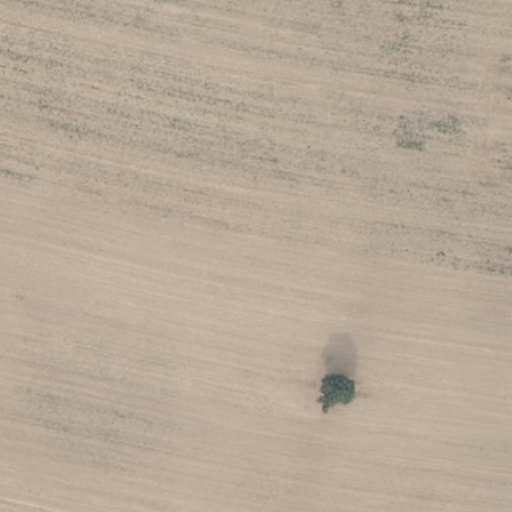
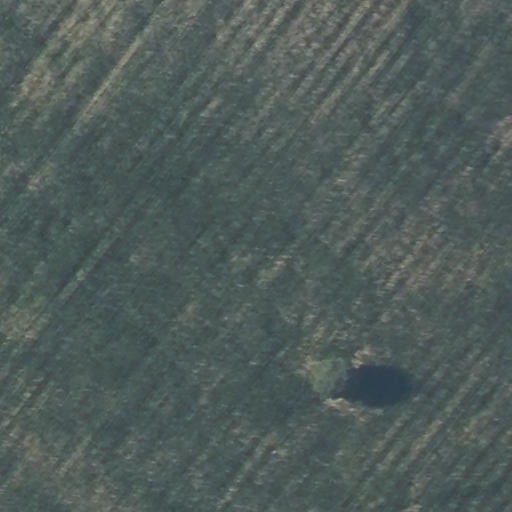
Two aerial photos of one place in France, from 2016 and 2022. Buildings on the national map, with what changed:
[]

